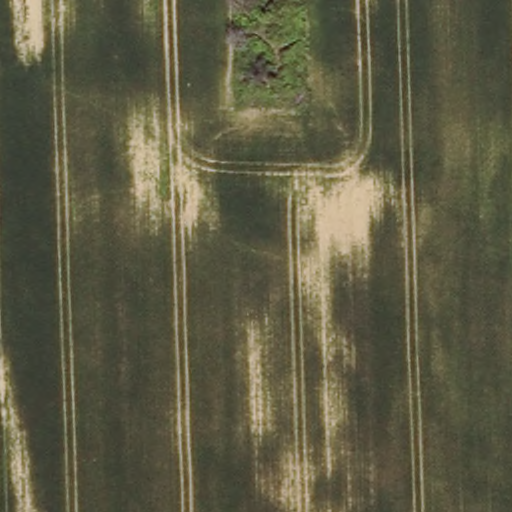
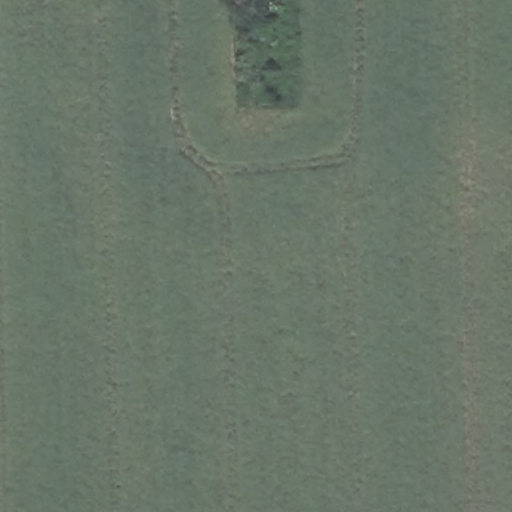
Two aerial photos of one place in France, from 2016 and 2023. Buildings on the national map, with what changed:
[]

